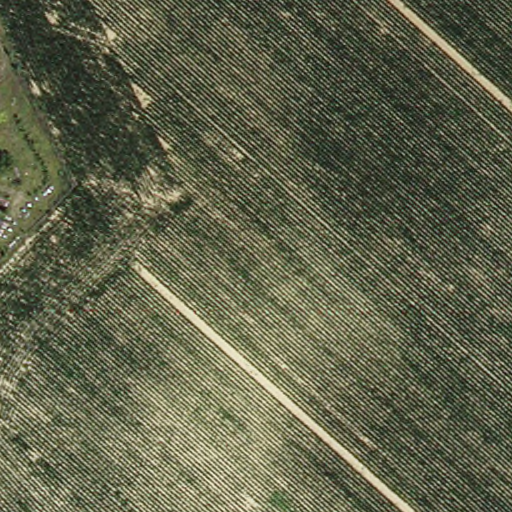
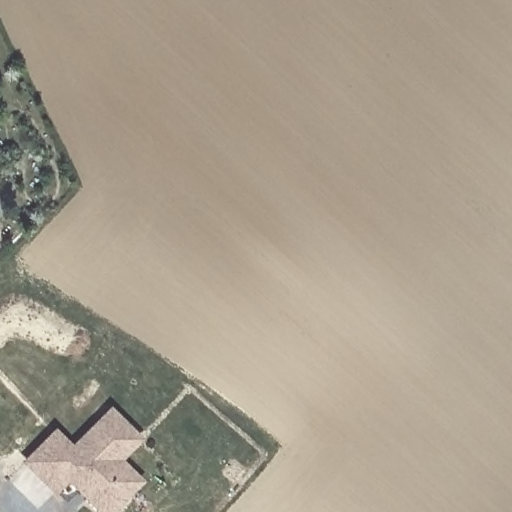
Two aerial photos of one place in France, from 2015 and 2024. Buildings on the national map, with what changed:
new [(73,477),(60,491),(41,473),(30,463),(59,432),(70,443),(76,449),(114,409),(143,437),(116,465),(122,459),(145,480),(134,492),(120,506),(115,512),(109,512),(104,507),(73,477)]

